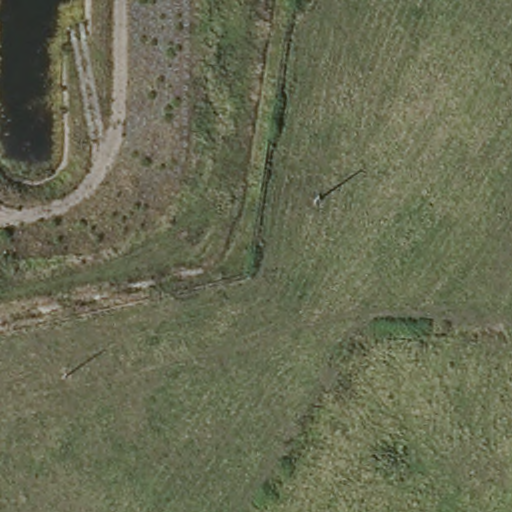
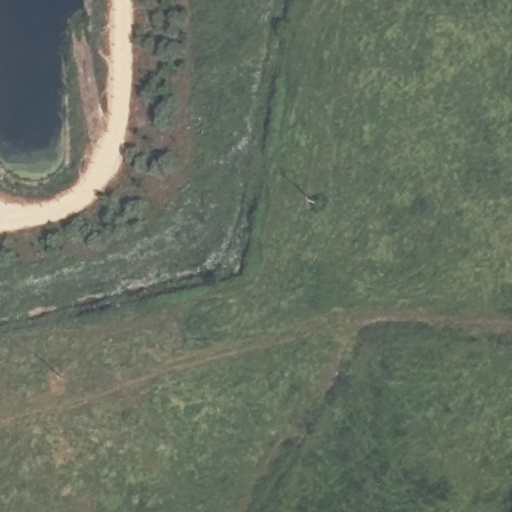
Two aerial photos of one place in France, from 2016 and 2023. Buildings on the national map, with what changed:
[]

